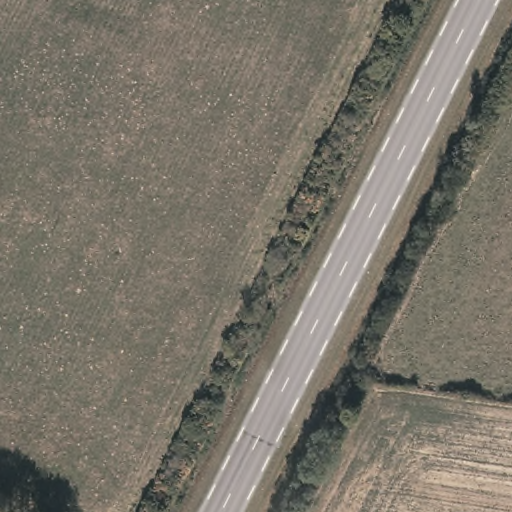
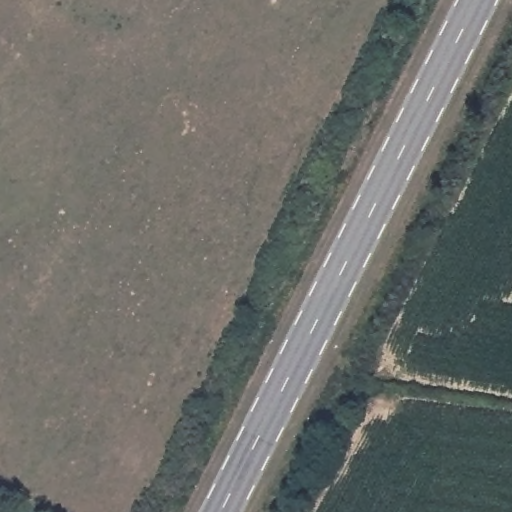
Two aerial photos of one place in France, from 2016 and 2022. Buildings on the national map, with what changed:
[]

